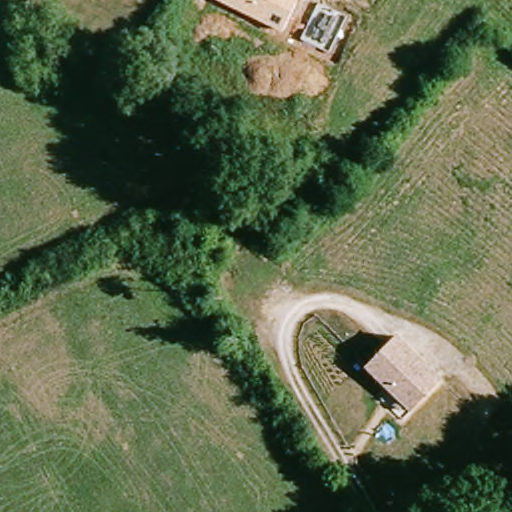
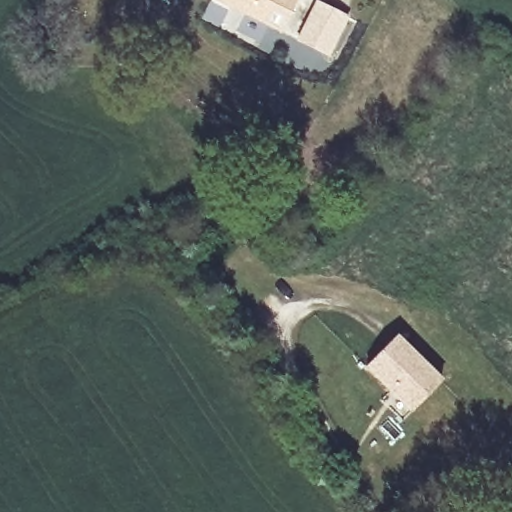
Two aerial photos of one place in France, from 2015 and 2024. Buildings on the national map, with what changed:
unchanged [(281,32),(217,0),(295,0),(281,32)]
new [(318,2),(349,17),(330,54),(300,40),(318,2)]
unchanged [(391,392),(369,369),(401,338),(442,384),(416,408),(411,412),(391,392)]

